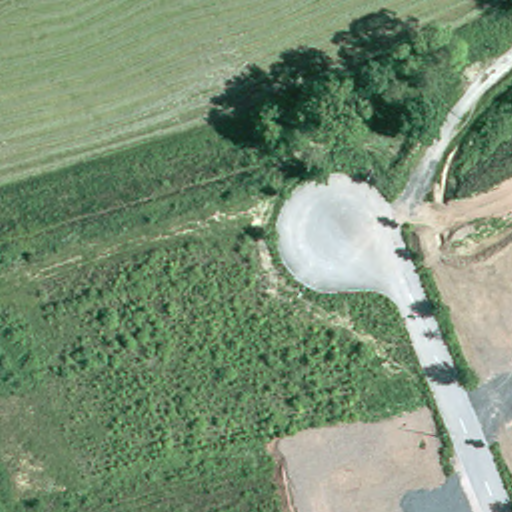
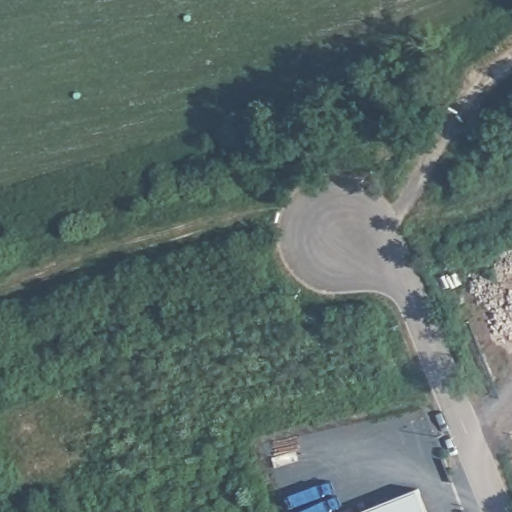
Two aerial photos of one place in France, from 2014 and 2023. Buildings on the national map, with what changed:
new [(429,512),(358,512),(419,487),(429,512)]

